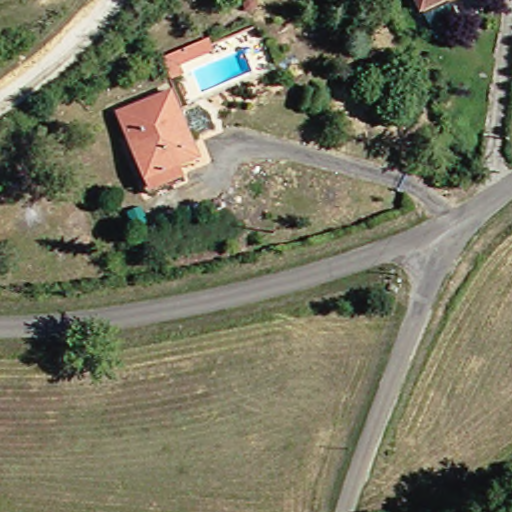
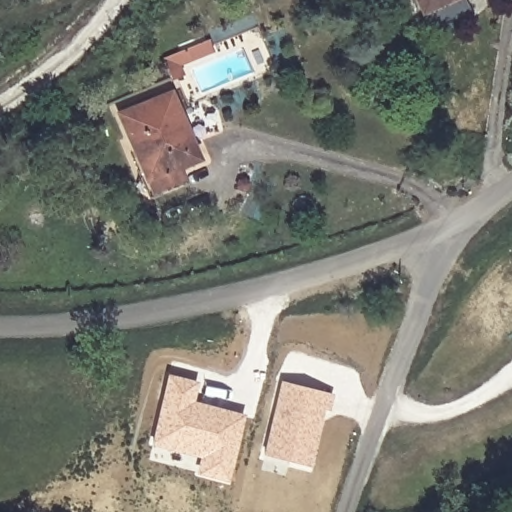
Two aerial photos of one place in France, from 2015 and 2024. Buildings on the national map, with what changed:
unchanged [(404,0),(447,0),(412,17),(404,0)]
unchanged [(183,75),(172,80),(164,59),(185,50),(209,40),(212,50),(189,60),(188,58),(178,62),(183,75)]
unchanged [(192,159),(172,167),(179,181),(144,196),(137,180),(140,179),(114,114),(165,93),(192,159)]
new [(194,400),(245,414),(226,483),(195,475),(199,458),(149,445),(167,374),(199,383),(194,400)]
new [(330,411),(323,410),(309,465),(262,455),(280,380),(333,393),(330,411)]

